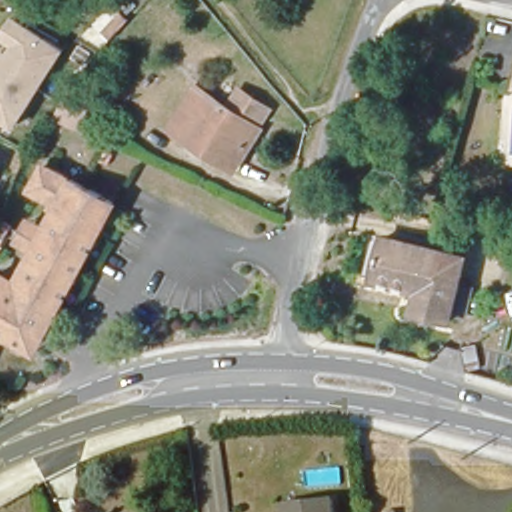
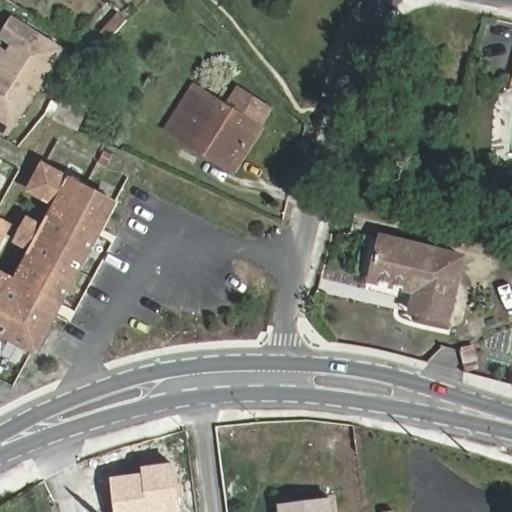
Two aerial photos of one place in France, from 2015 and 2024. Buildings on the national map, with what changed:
unchanged [(0,119),(0,48),(1,46),(8,50),(12,43),(0,36),(0,34),(14,15),(68,50),(16,129),(0,119)]
unchanged [(175,140),(166,134),(182,107),(194,88),(230,109),(235,101),(242,91),(275,110),(239,169),(234,176),(195,152),(175,140)]
demolished [(86,99),(71,130),(42,116),(66,89),(86,99)]
unchanged [(6,160),(0,170),(0,157),(6,160)]
unchanged [(44,359),(0,338),(0,271),(21,281),(34,255),(11,245),(1,260),(0,260),(0,218),(20,229),(27,213),(47,225),(57,209),(29,195),(47,163),(121,209),(44,359)]
unchanged [(407,319),(413,298),(367,288),(380,240),(468,264),(451,330),(407,319)]
new [(175,464),(183,512),(116,512),(112,478),(145,474),(142,468),(175,464)]
unchanged [(332,502),(333,512),(283,512),(302,510),(302,506),(332,502)]

